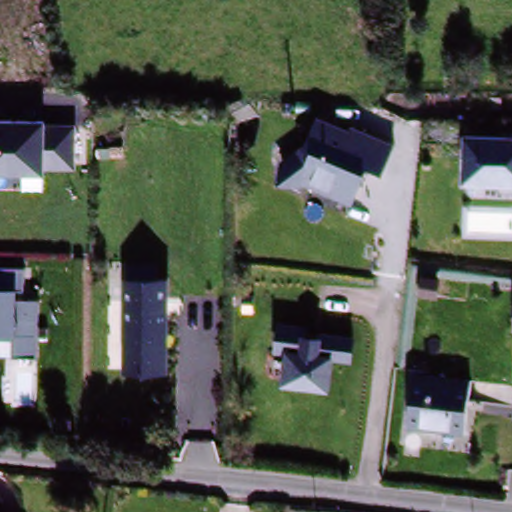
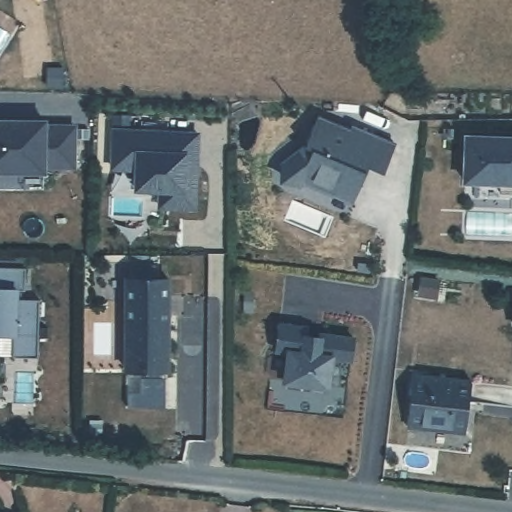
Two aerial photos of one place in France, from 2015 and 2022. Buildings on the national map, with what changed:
unchanged [(351,127),(354,121),(398,140),(384,173),(371,166),(352,205),(305,183),(301,187),(282,182),(282,163),(302,148),(318,115),(351,127)]
demolished [(131,130),(132,116),(146,117),(145,130),(131,130)]
unchanged [(47,119),(47,126),(75,125),(75,168),(48,168),(48,178),(0,176),(0,118),(47,119)]
new [(198,154),(198,163),(197,205),(162,205),(162,189),(138,188),(138,164),(118,163),(118,130),(198,131),(198,154)]
unchanged [(512,185),(462,183),(462,133),(512,135),(512,185)]
unchanged [(25,268),(24,300),(38,301),(37,355),(12,354),(13,339),(0,338),(0,267),(25,268)]
unchanged [(124,376),(124,284),(165,285),(165,377),(124,376)]
unchanged [(307,323),(306,330),(355,337),(352,363),(335,361),(330,390),(280,382),(282,355),(273,353),(277,320),(307,323)]
unchanged [(411,430),(416,381),(472,386),(468,435),(411,430)]

